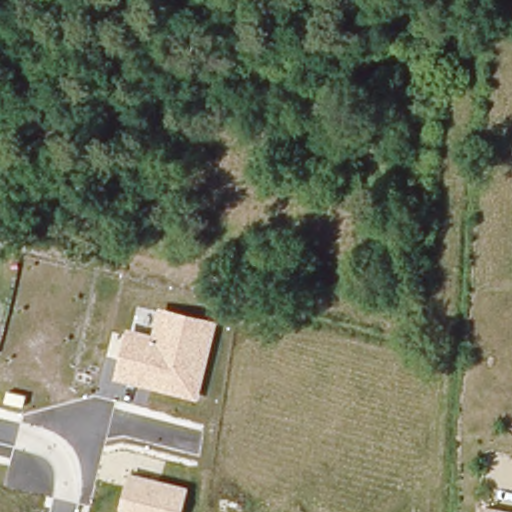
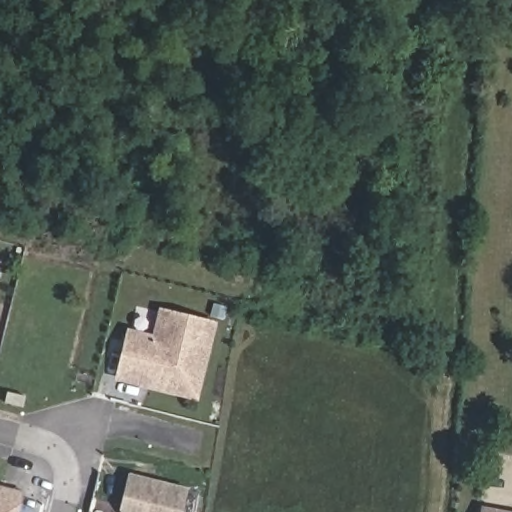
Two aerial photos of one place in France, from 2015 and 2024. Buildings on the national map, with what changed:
unchanged [(212,327),(196,395),(123,377),(133,338),(160,346),(167,316),(212,327)]
unchanged [(184,512),(122,512),(121,509),(132,473),(190,487),(184,512)]
new [(20,512),(0,512),(0,485),(24,491),(22,504),(20,512)]
unchanged [(488,507),(508,512),(486,512),(488,507)]

